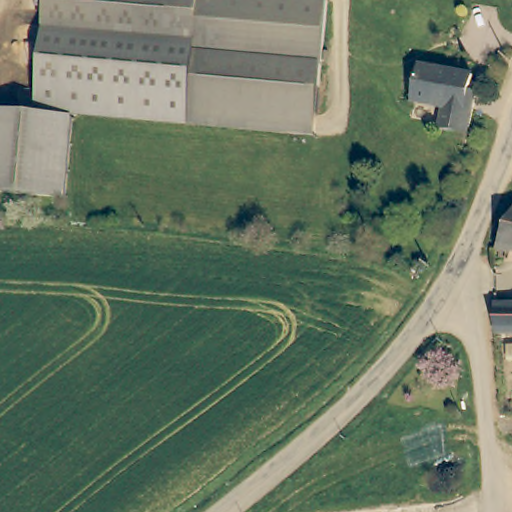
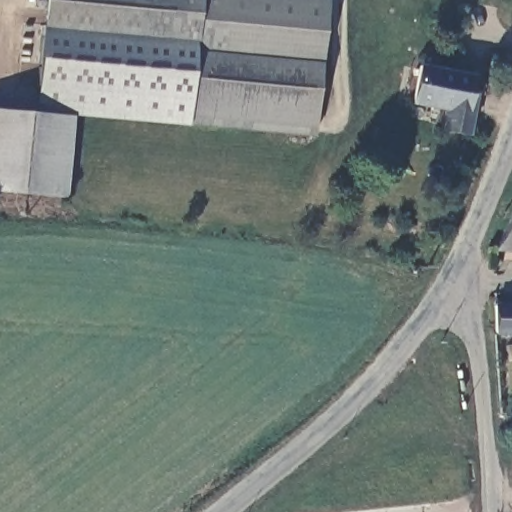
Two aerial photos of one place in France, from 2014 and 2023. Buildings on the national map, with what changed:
unchanged [(34,109),(41,21),(43,0),(196,0),(194,31),(193,36),(321,47),(315,134),(34,109)]
unchanged [(321,47),(193,36),(194,31),(196,0),(325,0),(321,46),(321,47)]
unchanged [(463,90),(469,92),(461,133),(432,126),(436,106),(406,100),(414,61),(467,73),(463,90)]
unchanged [(0,191),(0,110),(69,116),(64,196),(0,191)]
unchanged [(495,250),(512,214),(512,253),(495,253),(495,250)]
unchanged [(490,308),(512,307),(512,336),(490,336),(490,308)]

